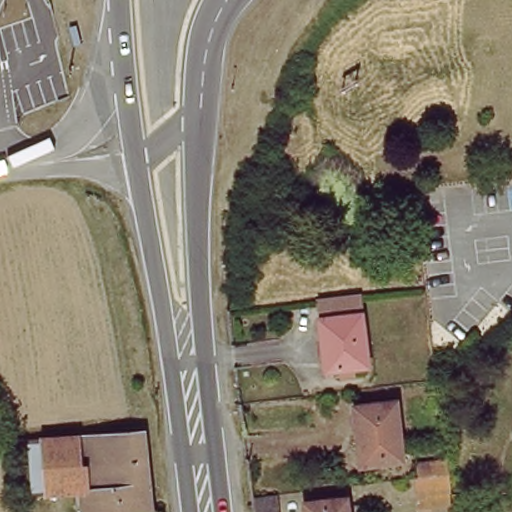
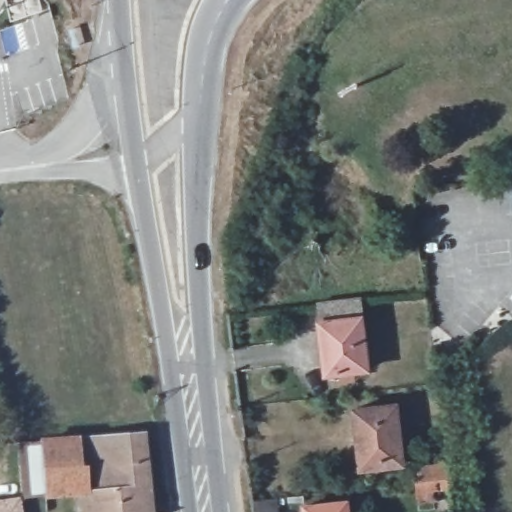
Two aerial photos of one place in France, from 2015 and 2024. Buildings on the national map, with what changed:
unchanged [(320,331),(317,308),(355,302),(358,325),(364,372),(326,376),(319,331),(320,331)]
unchanged [(391,402),(398,464),(355,467),(351,405),(391,402)]
unchanged [(156,512),(85,512),(83,496),(51,498),(45,445),(146,434),(156,512)]
unchanged [(411,496),(409,475),(408,459),(442,458),(444,472),(447,495),(411,496)]
unchanged [(251,493),(284,490),(285,512),(253,512),(251,493)]
new [(23,512),(0,512),(0,499),(20,496),(23,512)]
unchanged [(350,502),(350,512),(310,512),(310,506),(350,502)]

